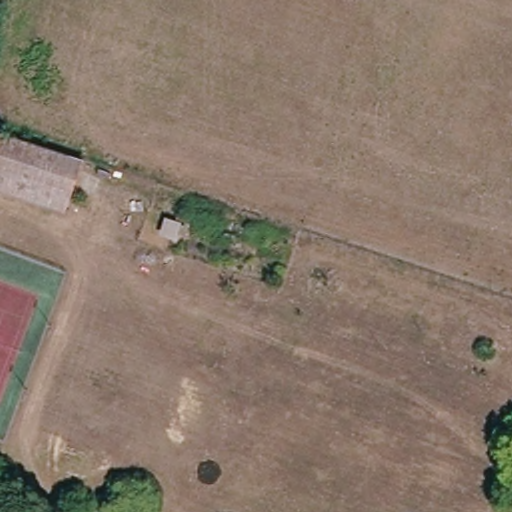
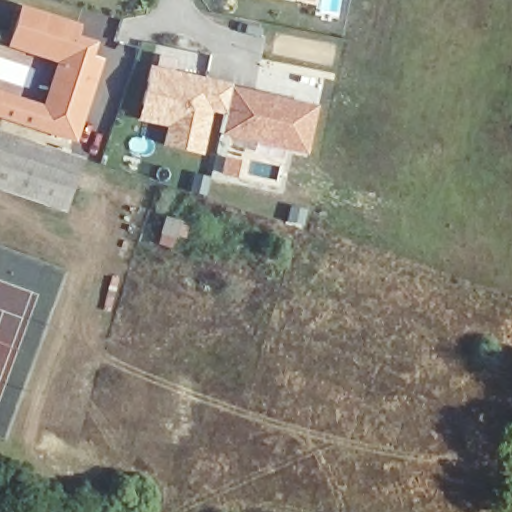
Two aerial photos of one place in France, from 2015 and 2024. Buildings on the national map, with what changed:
new [(292,0),(314,0),(313,3),(292,0)]
new [(53,64),(5,47),(20,2),(81,25),(78,36),(96,42),(92,55),(103,59),(90,101),(72,143),(29,130),(0,120),(0,90),(40,103),(53,64)]
new [(148,64),(229,85),(222,116),(211,114),(203,156),(160,146),(165,128),(135,121),(148,64)]
new [(222,116),(229,85),(316,105),(305,156),(218,137),(222,116)]
unchanged [(83,166),(66,218),(0,198),(0,140),(29,149),(83,166)]
new [(164,216),(190,224),(184,240),(176,238),(172,249),(156,244),(164,216)]

